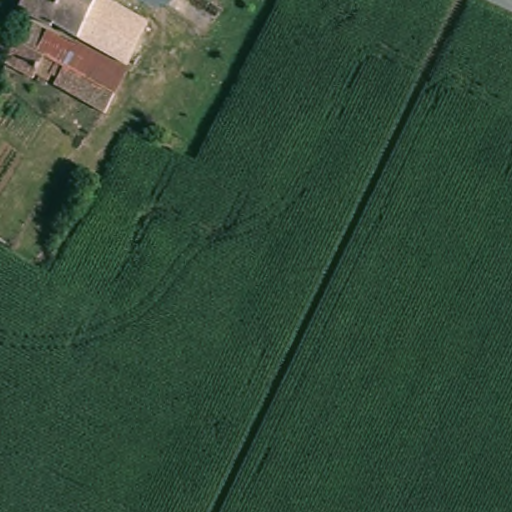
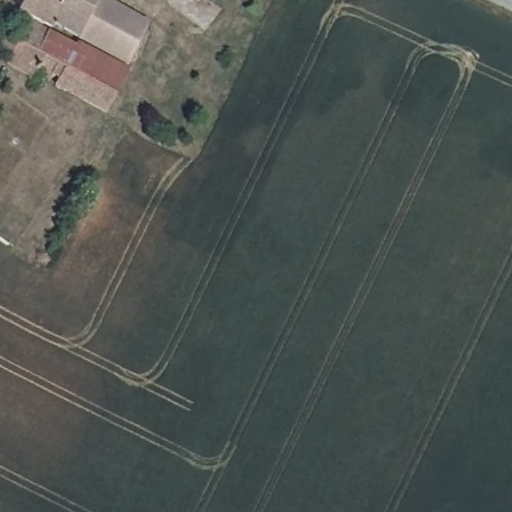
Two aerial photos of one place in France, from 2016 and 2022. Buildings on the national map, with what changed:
unchanged [(56,26),(53,30),(14,8),(20,0),(105,0),(148,22),(128,63),(56,26)]
unchanged [(123,74),(104,112),(61,90),(64,82),(56,78),(50,86),(41,82),(36,90),(7,76),(30,30),(123,74)]

